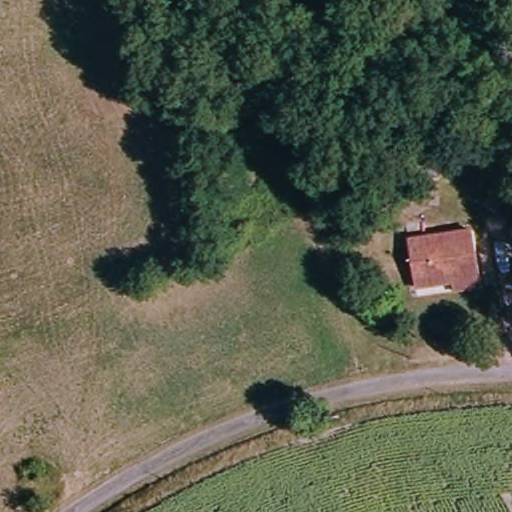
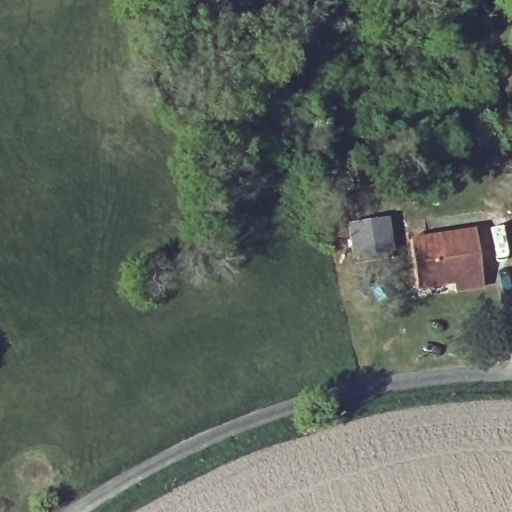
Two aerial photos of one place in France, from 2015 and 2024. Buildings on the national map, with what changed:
new [(348,225),(387,219),(393,252),(353,258),(348,225)]
unchanged [(485,285),(421,292),(416,246),(478,240),(485,285)]

